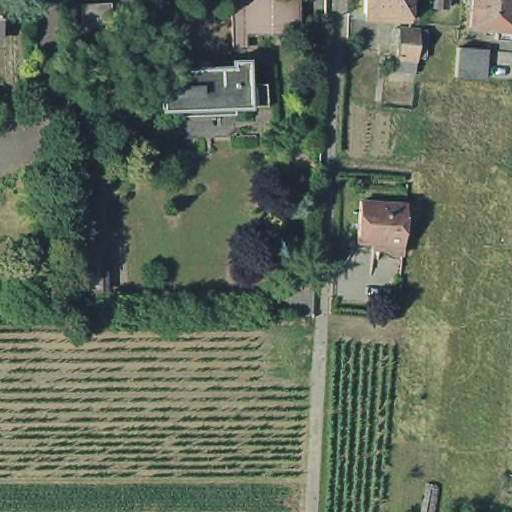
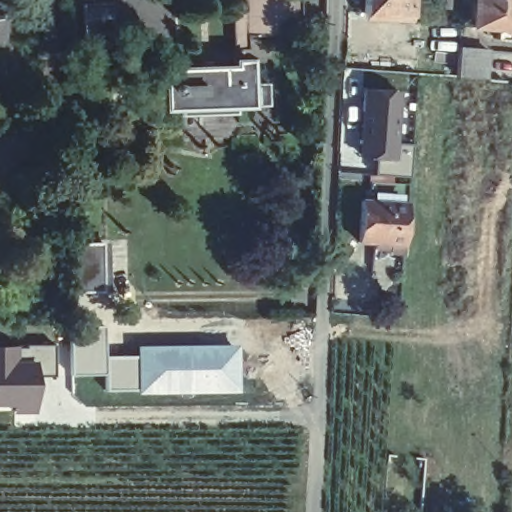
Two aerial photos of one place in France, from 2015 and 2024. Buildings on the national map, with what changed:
unchanged [(0,34),(0,0),(2,0),(4,34),(0,34)]
unchanged [(231,0),(302,0),(303,22),(318,21),(318,31),(248,34),(248,47),(246,47),(233,47),(231,0)]
unchanged [(415,0),(414,15),(384,15),(384,9),(371,8),(371,0),(415,0)]
unchanged [(450,0),(449,9),(435,7),(436,0),(450,0)]
unchanged [(501,32),(492,31),(492,24),(476,22),(478,5),(478,0),(512,0),(512,35),(502,35),(501,32)]
unchanged [(113,2),(114,32),(83,34),(83,4),(113,2)]
demolished [(400,23),(426,25),(422,70),(402,67),(404,40),(399,39),(400,23)]
unchanged [(459,47),(488,49),(486,79),(457,77),(459,47)]
unchanged [(178,61),(179,69),(233,67),(233,60),(251,59),(251,84),(266,83),(266,105),(252,105),(251,106),(235,107),(234,112),(180,115),(179,109),(163,109),(161,62),(178,61)]
new [(402,92),(400,147),(413,147),(411,180),(375,176),(376,163),(360,161),(363,89),(402,92)]
unchanged [(363,196),(408,200),(406,224),(404,235),(390,234),(389,240),(359,237),(363,196)]
unchanged [(102,241),(103,290),(69,291),(68,241),(102,241)]
new [(104,326),(105,356),(136,356),(136,389),(104,389),(104,375),(69,375),(67,325),(104,326)]
new [(136,345),(237,345),(238,393),(137,393),(136,389),(136,356),(136,345)]
new [(55,346),(55,375),(40,376),(39,416),(13,416),(13,410),(0,410),(0,347),(55,346)]

